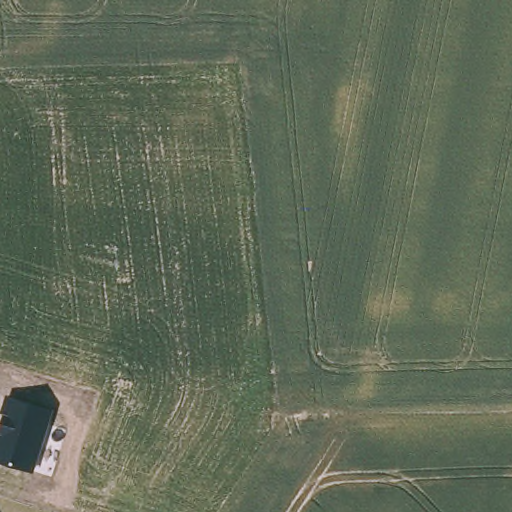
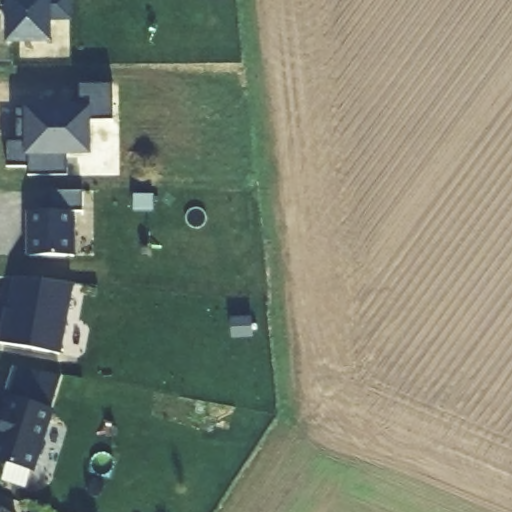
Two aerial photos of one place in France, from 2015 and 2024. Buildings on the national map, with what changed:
new [(48,40),(7,40),(6,5),(0,5),(0,0),(67,0),(68,17),(48,17),(48,40)]
new [(29,166),(8,165),(8,141),(18,142),(18,110),(23,110),(23,103),(79,102),(79,86),(113,84),(113,120),(90,120),(90,155),(66,155),(66,174),(28,174),(29,166)]
new [(82,210),(72,210),(73,255),(28,255),(28,234),(30,234),(30,210),(50,210),(50,190),(82,189),(82,210)]
new [(58,353),(0,342),(0,333),(2,323),(9,321),(10,315),(8,315),(14,277),(71,282),(58,353)]
new [(51,407),(6,393),(13,365),(61,375),(51,407)]
unchanged [(55,408),(34,473),(0,462),(0,414),(6,393),(55,408)]
new [(0,512),(0,506),(10,512),(0,512)]

